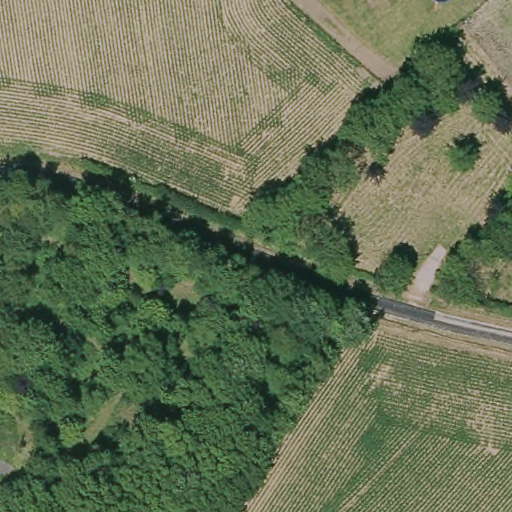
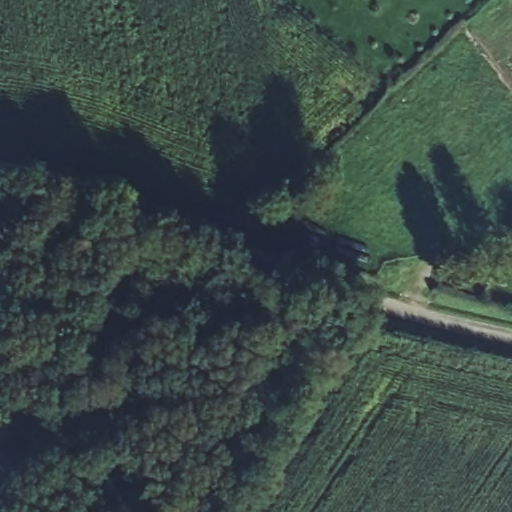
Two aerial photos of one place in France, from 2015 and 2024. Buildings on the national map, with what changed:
unchanged [(512,109),(512,112),(510,110),(512,109)]

